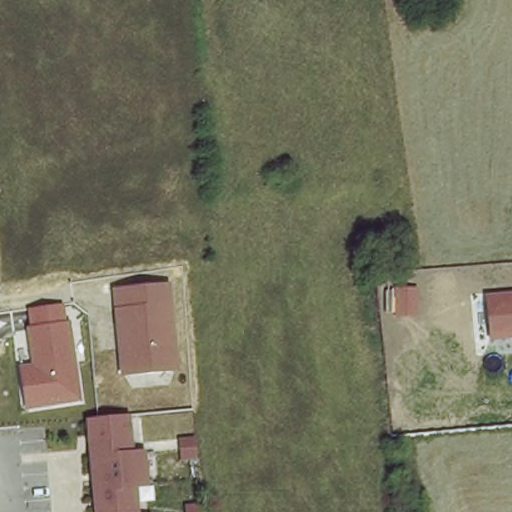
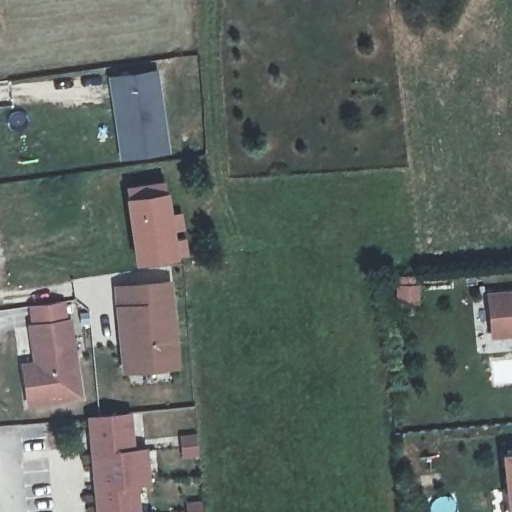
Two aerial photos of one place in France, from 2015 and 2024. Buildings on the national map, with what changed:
new [(119,158),(108,77),(157,70),(169,152),(119,158)]
new [(125,199),(167,192),(177,258),(135,264),(125,199)]
unchanged [(174,281),(183,367),(123,373),(113,287),(174,281)]
unchanged [(490,339),(485,292),(512,290),(512,337),(490,339)]
unchanged [(76,318),(85,401),(23,407),(17,362),(31,360),(28,323),(76,318)]
unchanged [(147,450),(149,489),(139,490),(142,512),(94,512),(86,420),(130,416),(134,451),(147,450)]
new [(507,512),(502,453),(512,452),(512,512),(507,512)]

